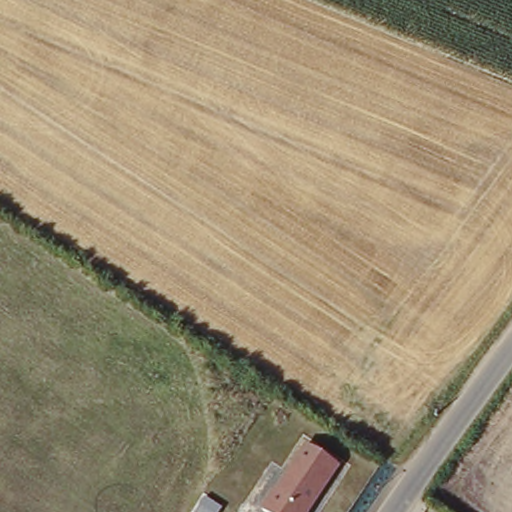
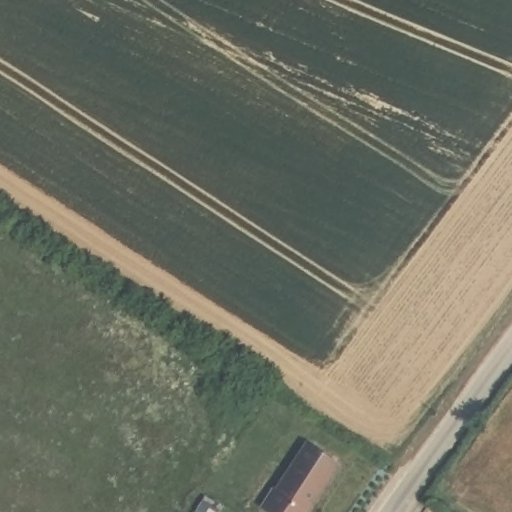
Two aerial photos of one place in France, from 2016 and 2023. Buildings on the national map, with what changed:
unchanged [(308,512),(267,512),(262,509),(303,443),(338,463),(308,512)]

